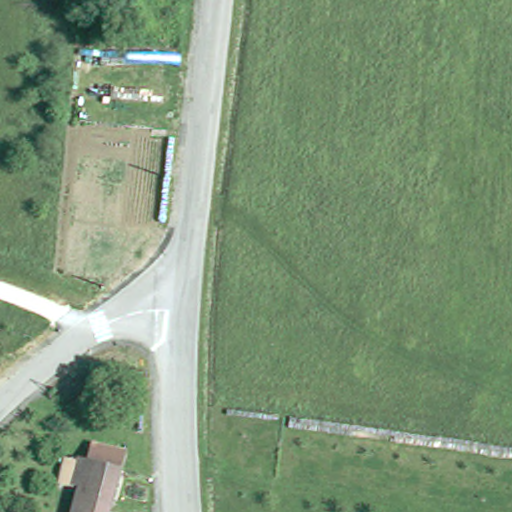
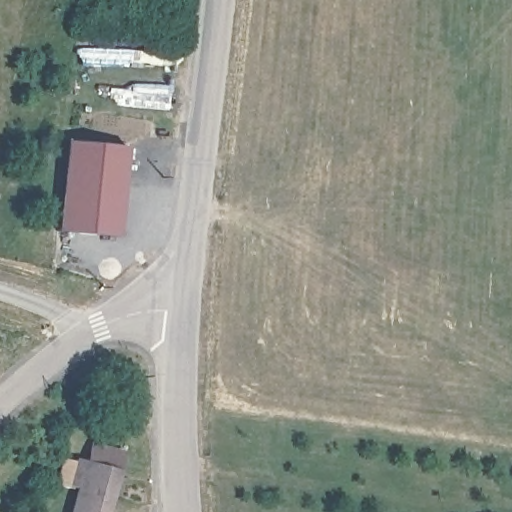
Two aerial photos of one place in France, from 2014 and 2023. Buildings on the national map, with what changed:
new [(117,237),(56,230),(65,139),(128,145),(117,237)]
unchanged [(126,453),(115,512),(82,512),(85,493),(64,490),(69,458),(94,463),(96,448),(126,453)]

